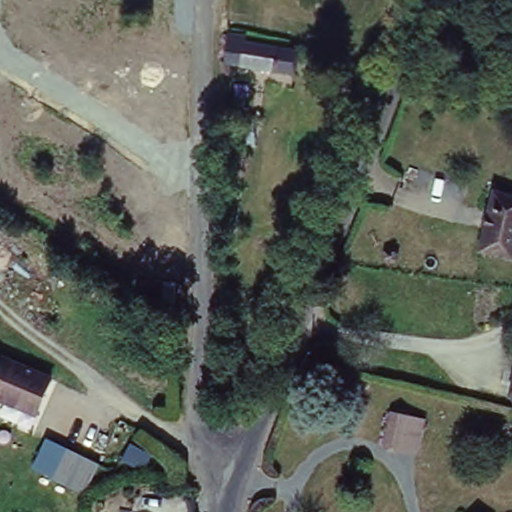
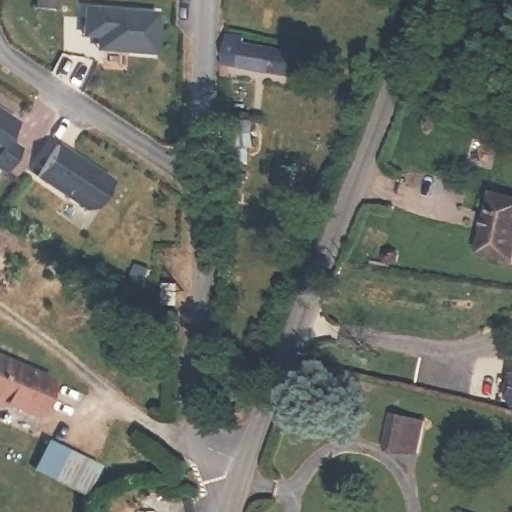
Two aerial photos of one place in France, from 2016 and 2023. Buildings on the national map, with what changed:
new [(156,8),(154,53),(100,50),(100,37),(79,36),(83,3),(156,8)]
unchanged [(234,39),(257,44),(255,50),(292,56),(293,49),(303,54),(299,76),(230,63),(234,39)]
new [(4,136),(19,146),(4,169),(0,166),(0,109),(16,120),(4,136)]
new [(111,179),(90,209),(37,173),(58,143),(111,179)]
unchanged [(512,191),(512,255),(482,250),(499,188),(512,191)]
unchanged [(39,412),(4,401),(3,406),(0,405),(0,361),(51,377),(39,412)]
unchanged [(412,419),(407,445),(387,441),(394,414),(412,419)]
unchanged [(86,493),(33,469),(45,439),(99,465),(86,493)]
new [(129,443),(156,459),(144,480),(118,467),(129,443)]

